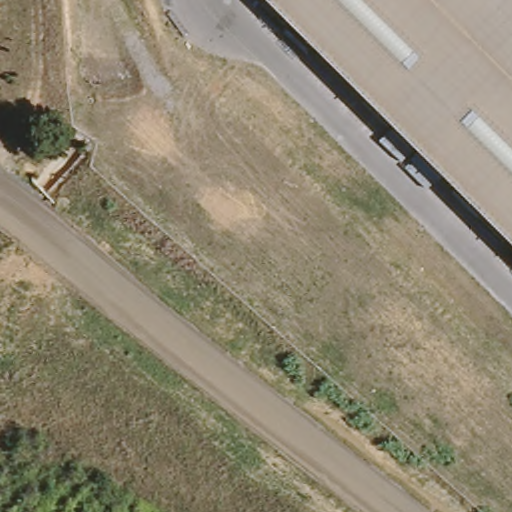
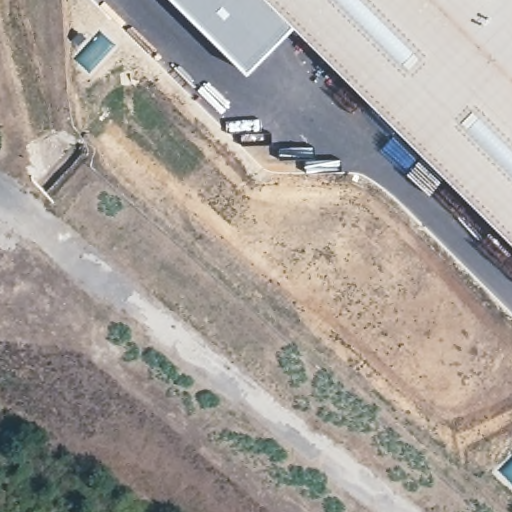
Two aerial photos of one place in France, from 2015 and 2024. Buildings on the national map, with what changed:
new [(244,71),(173,0),(265,0),(290,25),(244,71)]
unchanged [(512,0),(512,245),(265,0),(512,0)]

